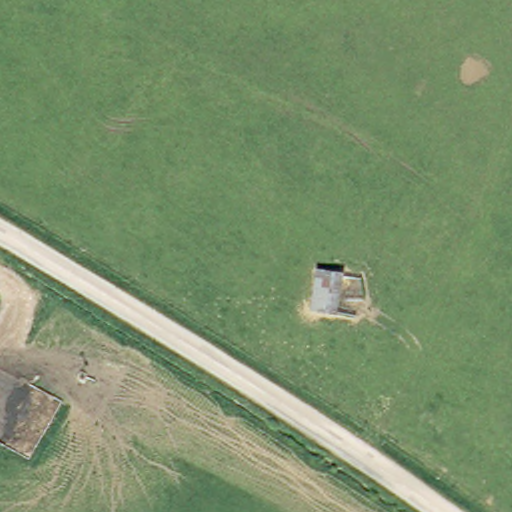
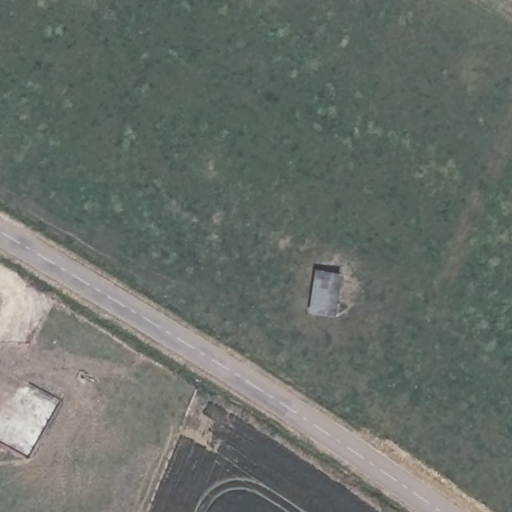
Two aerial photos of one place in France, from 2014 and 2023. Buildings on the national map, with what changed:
unchanged [(349,268),(345,308),(322,304),(326,266),(349,268)]

